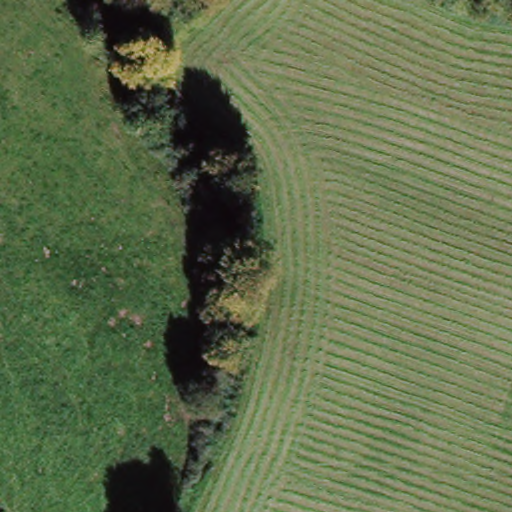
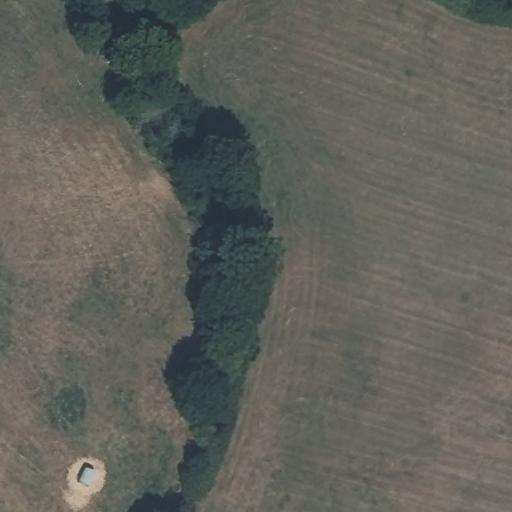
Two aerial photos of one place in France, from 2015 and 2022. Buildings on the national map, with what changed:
[]

